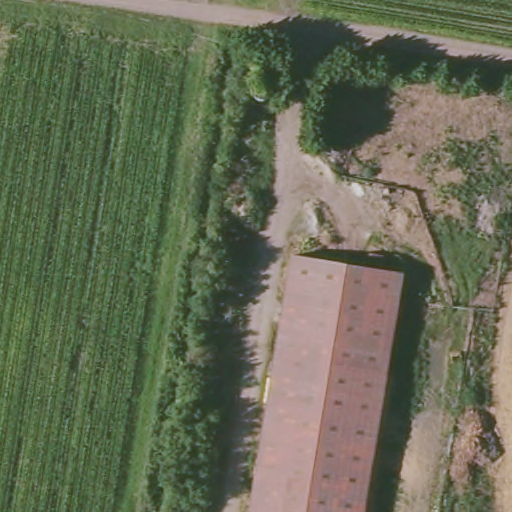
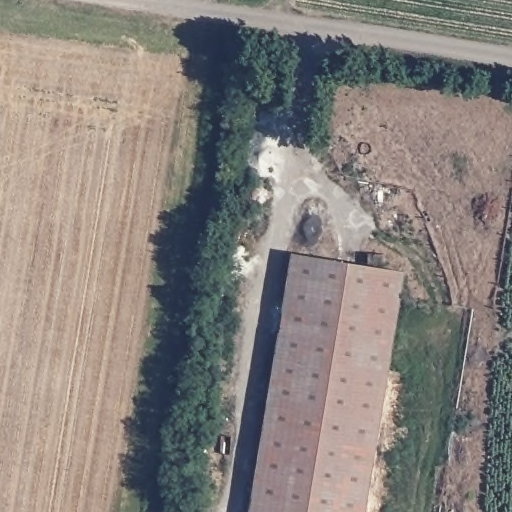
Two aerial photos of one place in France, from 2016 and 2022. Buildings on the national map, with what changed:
unchanged [(400,274),(363,512),(249,512),(290,257),(400,274)]

